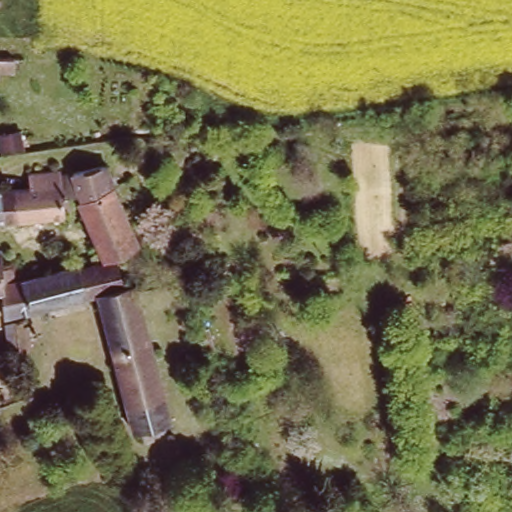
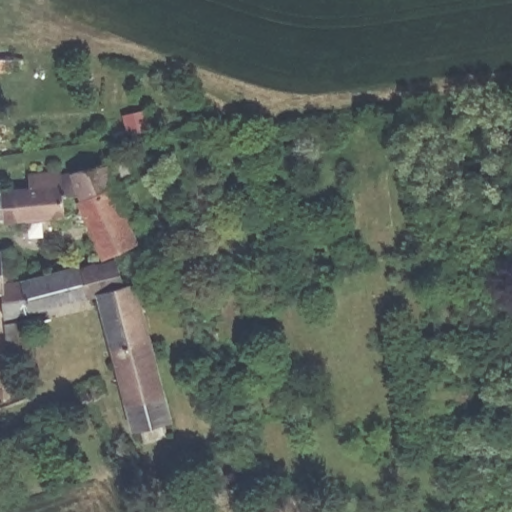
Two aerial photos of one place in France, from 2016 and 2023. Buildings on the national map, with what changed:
unchanged [(16,60),(17,73),(0,73),(0,60),(16,60)]
unchanged [(31,190),(31,177),(60,173),(61,178),(106,168),(139,247),(106,258),(81,201),(83,193),(74,192),(75,205),(65,207),(66,215),(0,220),(0,192),(31,190)]
unchanged [(25,295),(3,300),(2,293),(0,293),(0,251),(1,250),(1,252),(4,272),(13,270),(15,283),(20,281),(23,281),(25,295)]
unchanged [(98,293),(87,296),(83,274),(81,267),(118,257),(125,285),(98,293)]
unchanged [(83,274),(87,296),(16,315),(5,318),(3,300),(25,295),(23,281),(81,267),(83,274)]
unchanged [(138,282),(141,292),(173,422),(133,432),(98,293),(125,285),(138,282)]
unchanged [(38,370),(24,372),(21,351),(10,353),(7,326),(17,324),(31,321),(38,370)]

